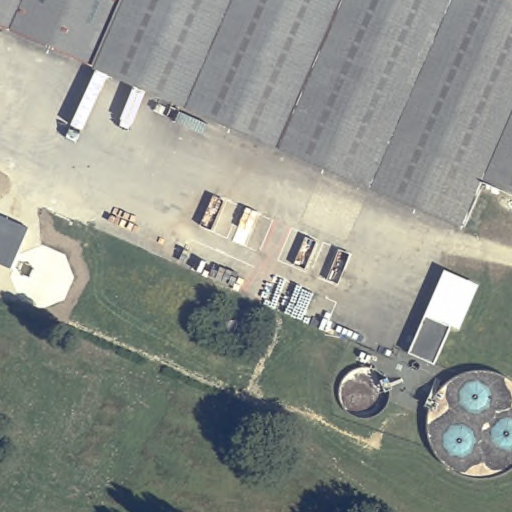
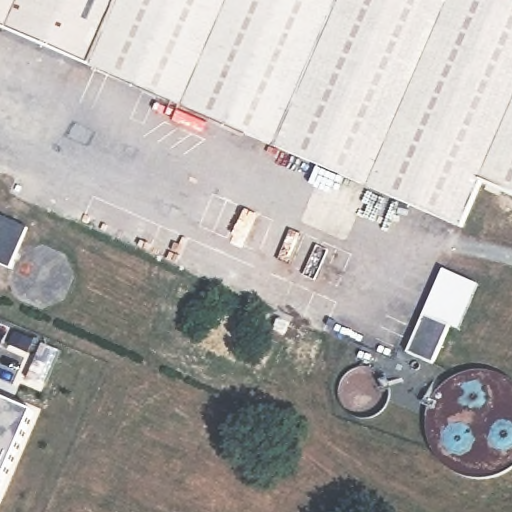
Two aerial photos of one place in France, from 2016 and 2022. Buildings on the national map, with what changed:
unchanged [(512,193),(483,180),(462,228),(0,27),(0,0),(512,0),(512,193)]
unchanged [(0,263),(0,215),(26,227),(8,267),(0,263)]
unchanged [(445,255),(478,270),(458,315),(448,310),(424,300),(445,255)]
unchanged [(448,310),(431,347),(407,336),(424,300),(448,310)]
new [(35,413),(0,492),(0,398),(35,413)]

